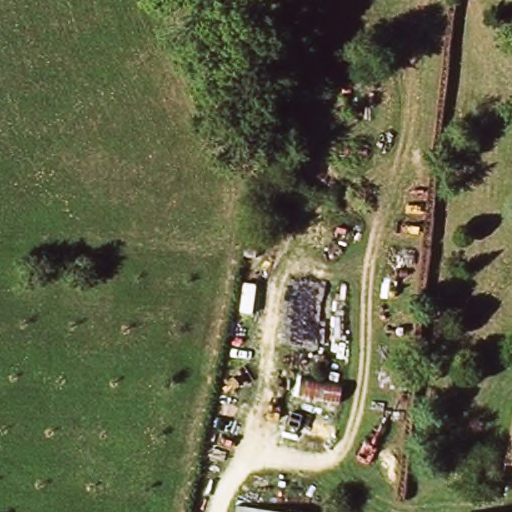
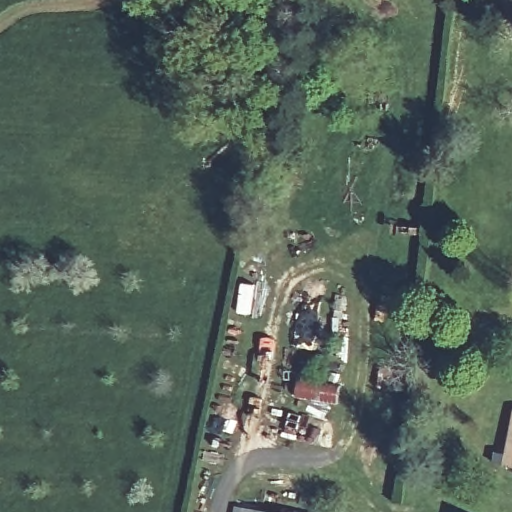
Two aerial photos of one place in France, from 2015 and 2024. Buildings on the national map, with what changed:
unchanged [(243,511),(253,512),(243,512),(243,511)]

